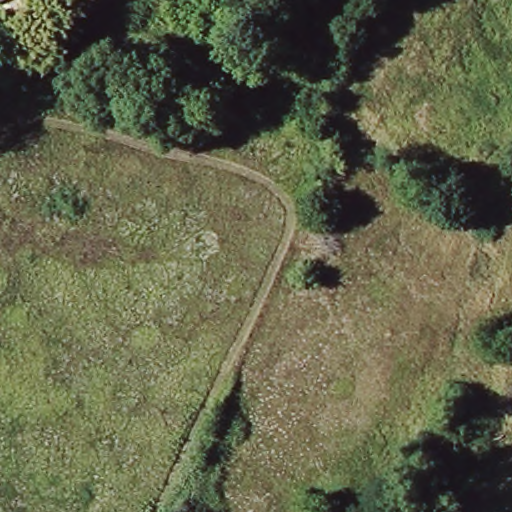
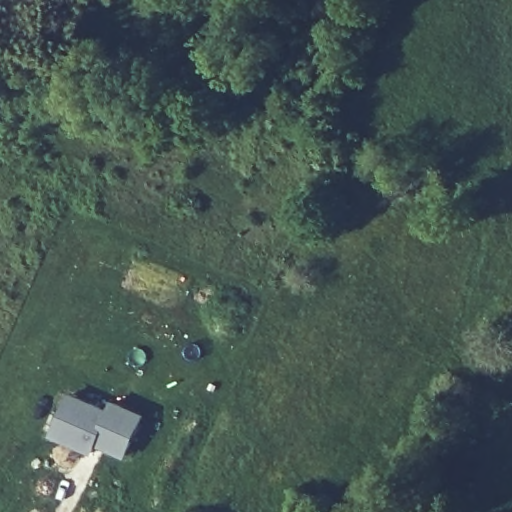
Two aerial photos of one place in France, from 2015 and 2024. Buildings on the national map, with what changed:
unchanged [(0,1),(0,0),(1,0),(0,1)]
unchanged [(27,3),(25,0),(34,0),(27,3)]
new [(70,395),(110,412),(113,403),(143,416),(126,456),(97,444),(92,453),(52,436),(70,395)]

